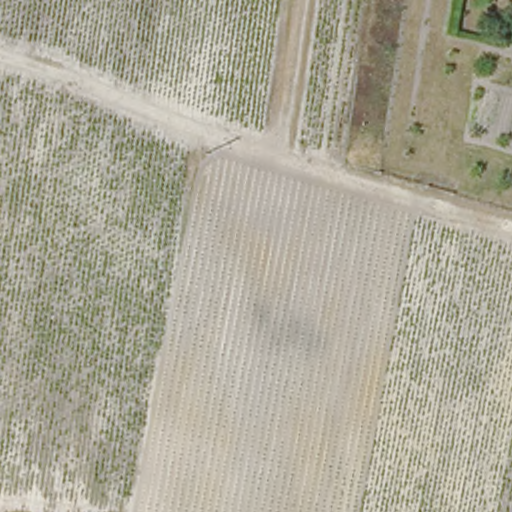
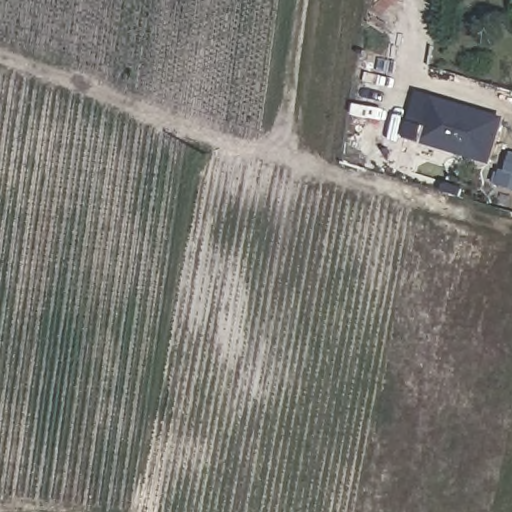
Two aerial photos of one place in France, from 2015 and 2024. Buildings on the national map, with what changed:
new [(407,138),(420,93),(506,119),(492,165),(407,138)]
new [(512,157),(512,187),(498,183),(501,173),(507,175),(512,157)]

